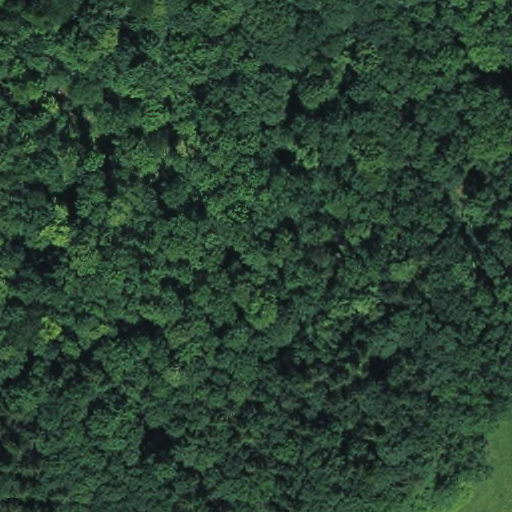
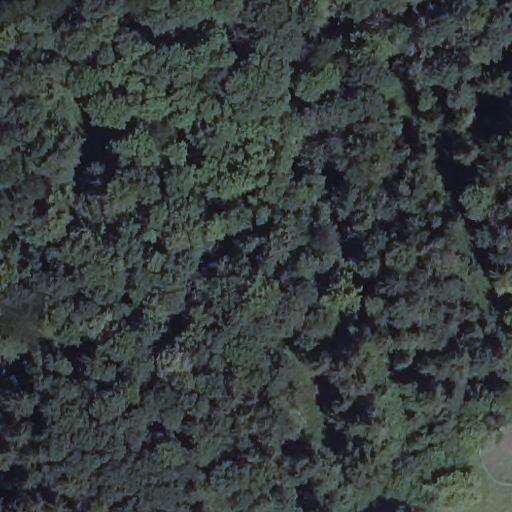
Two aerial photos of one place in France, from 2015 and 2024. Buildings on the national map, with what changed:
[]

